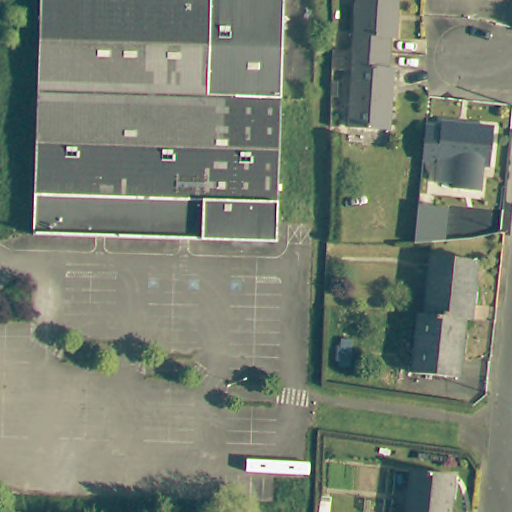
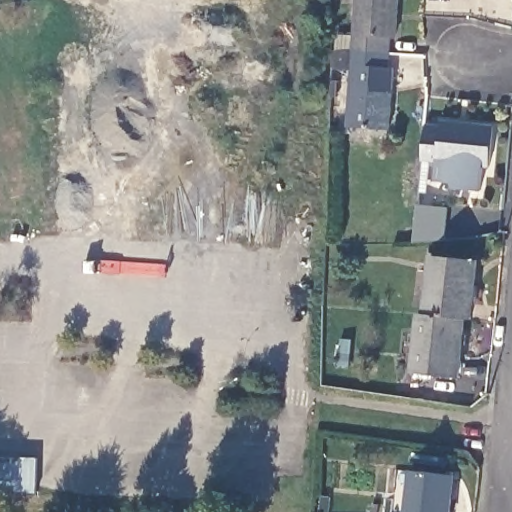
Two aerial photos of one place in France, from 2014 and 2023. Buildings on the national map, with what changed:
demolished [(290,5),(272,254),(27,234),(44,0),(310,0),(310,5),(290,5)]
unchanged [(387,35),(385,52),(351,49),(356,0),(397,0),(393,36),(387,35)]
unchanged [(384,66),(390,66),(385,127),(345,125),(351,49),(385,52),(384,66)]
unchanged [(484,168),(417,162),(421,129),(436,130),(436,124),(488,127),(484,168)]
new [(415,205),(446,207),(444,240),(411,243),(415,205)]
unchanged [(468,319),(462,318),(423,315),(429,256),(473,260),(468,319)]
unchanged [(457,378),(411,373),(417,315),(423,315),(462,318),(457,378)]
unchanged [(414,471),(456,475),(453,512),(410,512),(414,471)]

